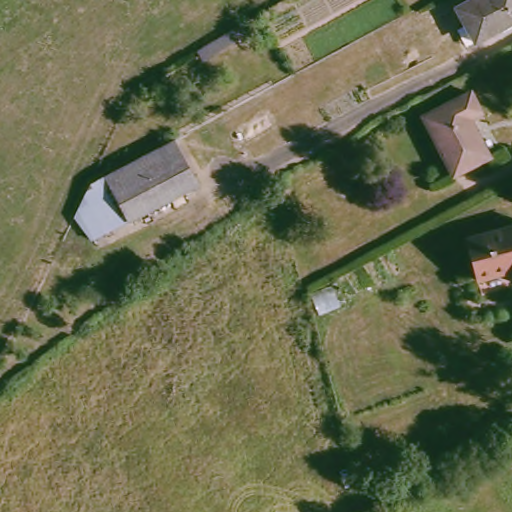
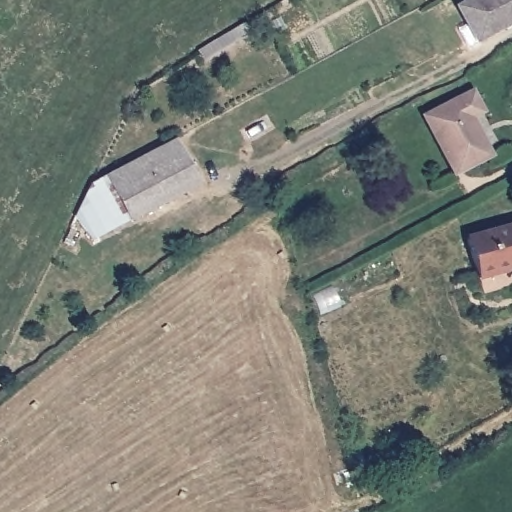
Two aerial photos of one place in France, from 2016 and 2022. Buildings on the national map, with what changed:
unchanged [(512,0),(512,19),(480,36),(465,5),(475,0),(512,0)]
unchanged [(455,175),(424,119),(475,90),(486,110),(475,115),(495,153),(469,167),(455,175)]
unchanged [(133,225),(95,245),(80,217),(97,180),(177,140),(203,186),(133,225)]
unchanged [(509,272),(478,280),(467,240),(512,226),(512,280),(509,272)]

